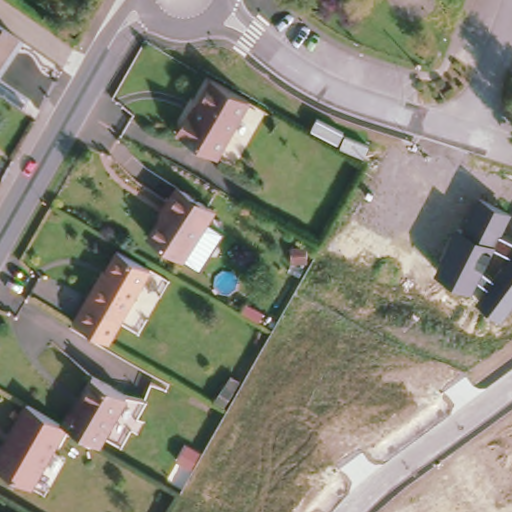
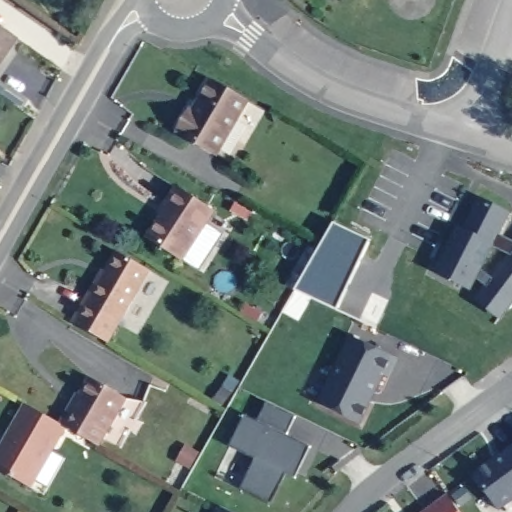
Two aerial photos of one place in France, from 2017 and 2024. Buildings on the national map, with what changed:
unchanged [(0,26),(16,36),(0,59),(0,26)]
unchanged [(223,154),(183,132),(196,110),(198,111),(217,78),(254,100),(223,154)]
unchanged [(181,256),(148,233),(161,213),(159,212),(166,202),(179,182),(216,207),(181,256)]
unchanged [(459,226),(463,227),(480,195),(512,211),(501,234),(512,240),(512,305),(501,319),(476,300),(488,286),(478,279),(472,291),(435,272),(459,226)]
new [(336,309),(300,291),(334,224),(369,242),(336,309)]
unchanged [(148,265),(106,337),(72,317),(96,274),(99,275),(116,246),(148,265)]
new [(386,374),(361,424),(321,404),(353,336),(399,359),(391,376),(386,374)]
unchanged [(68,403),(69,404),(85,375),(120,395),(94,441),(61,422),(58,420),(68,403)]
unchanged [(23,399),(58,420),(61,422),(26,484),(0,468),(0,439),(6,427),(23,399)]
new [(296,415),(288,434),(312,446),(296,477),(288,473),(273,504),(241,488),(256,458),(231,445),(245,414),(259,420),(268,401),(296,415)]
new [(501,509),(476,475),(512,448),(512,501),(501,509)]
new [(425,512),(449,494),(462,512),(425,512)]
new [(218,512),(221,506),(234,512),(218,512)]

